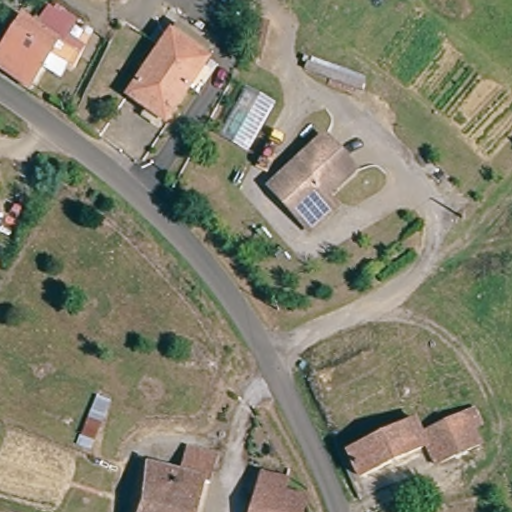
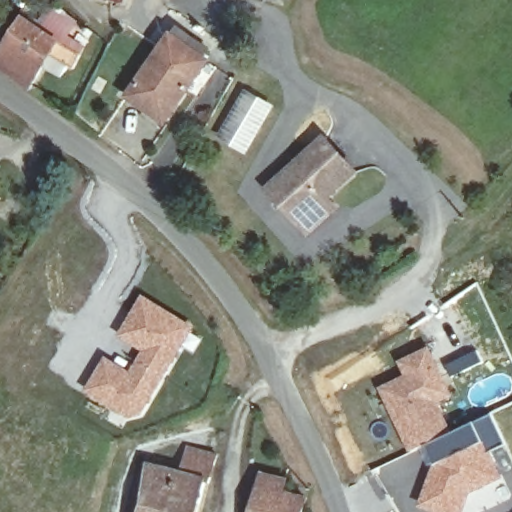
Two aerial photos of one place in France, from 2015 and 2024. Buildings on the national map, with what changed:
unchanged [(75,66),(52,54),(32,85),(0,63),(0,45),(21,15),(37,25),(55,0),(61,0),(72,9),(59,31),(87,49),(84,54),(75,66)]
unchanged [(127,96),(177,27),(187,34),(212,51),(206,60),(165,122),(127,96)]
unchanged [(247,94),(274,109),(249,152),(222,137),(247,94)]
unchanged [(314,229),(305,221),(271,186),(326,133),(358,166),(330,196),(338,205),(314,229)]
new [(86,392),(105,357),(131,372),(143,352),(117,337),(143,295),(196,328),(143,416),(130,420),(86,392)]
new [(436,465),(427,446),(410,454),(380,388),(405,375),(399,362),(430,346),(455,396),(440,403),(454,434),(475,424),(492,415),(506,445),(490,453),(505,479),(471,494),(465,512),(434,512),(420,506),(436,465)]
demolished [(485,417),(476,421),(484,440),(440,460),(431,440),(363,471),(352,446),(422,415),(428,428),(479,404),(485,417)]
unchanged [(184,438),(212,445),(206,472),(202,471),(193,512),(126,512),(140,456),(176,465),(184,438)]
unchanged [(283,488),(305,493),(300,512),(249,512),(262,460),(288,465),(283,488)]

